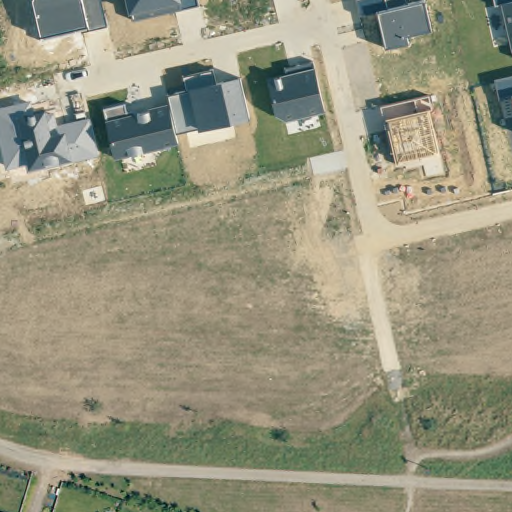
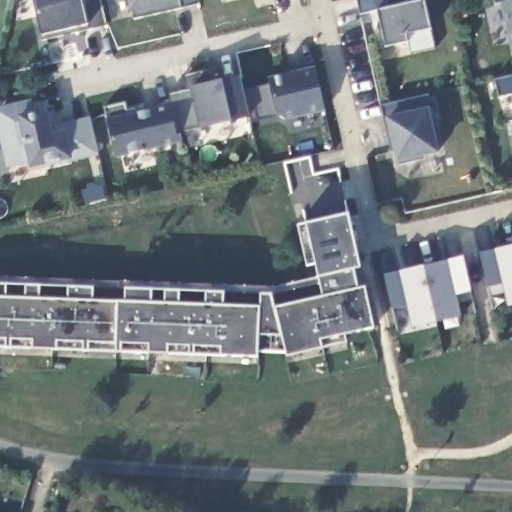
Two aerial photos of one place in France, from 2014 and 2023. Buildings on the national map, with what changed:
unchanged [(28,1),(29,0),(99,0),(104,24),(41,38),(28,1)]
unchanged [(197,3),(133,19),(129,0),(196,0),(197,3)]
unchanged [(405,5),(423,1),(429,28),(407,34),(408,41),(386,46),(378,11),(360,14),(357,0),(404,0),(405,5)]
unchanged [(512,51),(501,2),(493,3),(493,0),(512,0),(512,51)]
unchanged [(285,74),(284,66),(315,60),(324,111),(286,120),(278,113),(267,78),(285,74)]
unchanged [(124,102),(126,110),(171,102),(169,94),(187,89),(185,75),(211,69),(215,81),(240,75),(250,117),(200,127),(179,132),(180,141),(115,157),(105,107),(124,102)]
unchanged [(512,94),(499,98),(494,79),(512,76),(512,94)]
unchanged [(427,95),(427,108),(437,153),(396,162),(393,151),(389,152),(380,105),(427,95)]
unchanged [(30,99),(33,112),(51,108),(54,123),(88,116),(97,154),(27,171),(25,164),(4,168),(0,148),(0,107),(30,99)]
new [(93,288),(125,289),(224,292),(224,306),(260,309),(261,295),(271,295),(274,308),(324,296),(319,276),(315,264),(308,265),(298,227),(307,224),(348,215),(361,267),(353,269),(359,289),(363,287),(372,327),(343,335),(348,343),(321,349),(286,356),(285,352),(257,351),(256,358),(115,354),(0,347),(0,285),(93,288)]
new [(501,284),(487,288),(479,252),(512,245),(512,305),(505,306),(501,284)]
new [(461,257),(470,292),(454,295),(461,318),(410,328),(406,306),(390,309),(383,274),(461,257)]

